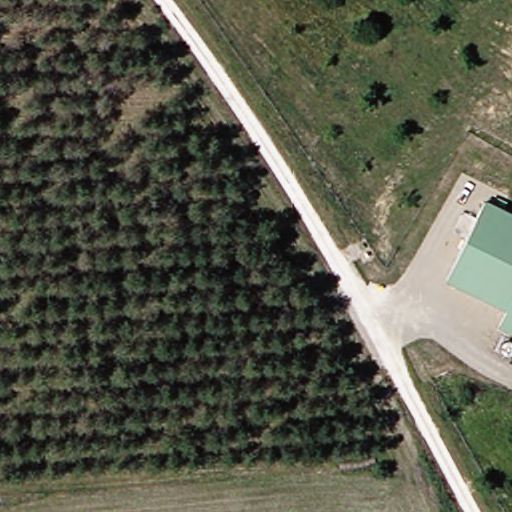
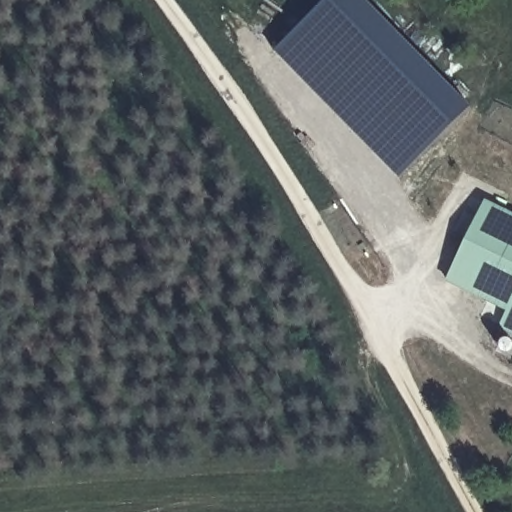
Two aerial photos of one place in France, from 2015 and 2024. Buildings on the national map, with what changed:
new [(364,0),(469,105),(400,173),(277,50),(328,0),(364,0)]
unchanged [(499,328),(508,310),(449,281),(486,201),(512,213),(512,335),(499,328)]

